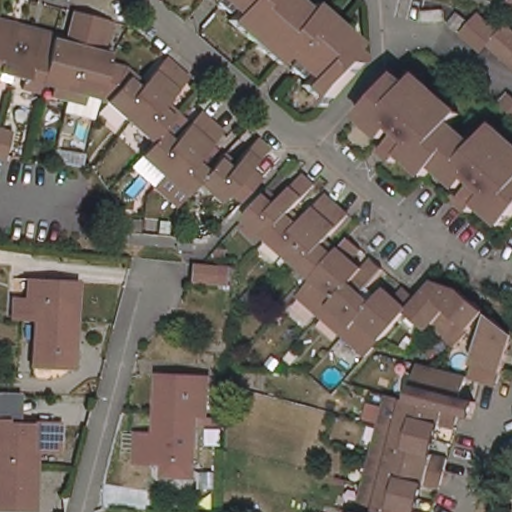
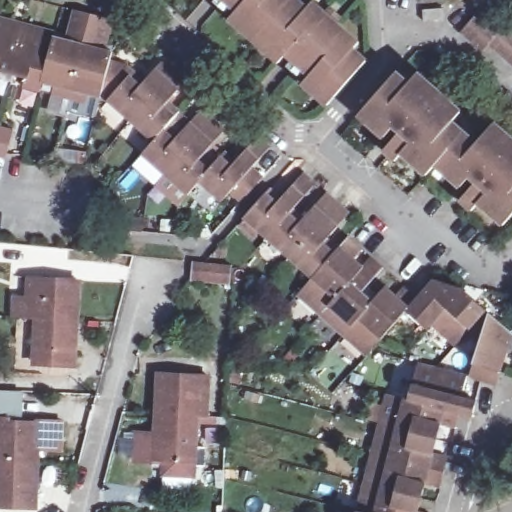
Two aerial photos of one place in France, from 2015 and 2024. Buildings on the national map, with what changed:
unchanged [(305,6),(310,0),(322,11),(327,6),(337,15),(332,20),(357,42),(352,47),(364,60),(332,94),(321,82),(313,91),(301,81),(307,72),(300,65),(297,67),(293,68),(290,66),(290,57),(283,51),(276,59),(266,50),(272,42),(246,17),(238,26),(228,16),(235,9),(227,2),(225,4),(221,4),(217,2),(217,0),(298,0),(305,6)]
unchanged [(501,12),(505,0),(512,0),(512,16),(501,12)]
unchanged [(447,5),(447,14),(426,15),(426,6),(447,5)]
unchanged [(11,28),(37,35),(38,29),(56,34),(55,39),(65,42),(74,9),(77,10),(107,17),(99,51),(110,54),(107,63),(101,92),(99,99),(87,96),(85,104),(52,96),(54,87),(42,84),(40,93),(24,89),(26,81),(2,75),(0,81),(0,20),(12,23),(11,28)]
unchanged [(500,29),(506,22),(512,28),(512,65),(487,43),(481,50),(461,32),(480,11),(500,29)]
unchanged [(101,92),(107,63),(128,69),(144,82),(167,56),(191,76),(172,97),(167,93),(162,99),(178,113),(166,126),(183,141),(188,136),(184,132),(202,112),(224,131),(205,152),(201,147),(196,152),(212,167),(225,153),(241,167),(245,163),(239,157),(259,137),(272,147),(252,169),(262,178),(254,187),(242,201),(232,192),(222,202),(199,182),(187,195),(142,154),(153,142),(108,101),(99,99),(101,92)]
unchanged [(491,217),(477,205),(470,213),(452,198),(460,190),(447,180),(435,169),(427,177),(415,166),(402,155),(395,163),(377,148),(385,140),(372,128),(360,118),(368,109),(394,79),(407,89),(415,79),(426,87),(440,100),(460,117),(451,128),(475,149),(493,129),(506,140),(512,145),(512,220),(504,230),(491,217)]
unchanged [(512,100),(512,117),(499,106),(508,96),(512,100)]
unchanged [(0,128),(24,133),(17,158),(17,160),(0,156),(0,128)]
unchanged [(402,287),(414,297),(403,310),(392,323),(363,356),(295,295),(311,276),(242,215),(266,187),(279,199),(284,192),(301,174),(312,184),(291,209),(301,219),(307,212),(324,195),(347,214),(329,232),(324,239),(337,250),(347,238),(359,248),(346,263),(357,273),(371,258),(381,268),(360,292),(371,302),(384,288),(393,297),(402,287)]
unchanged [(236,272),(234,287),(200,282),(202,267),(236,272)]
unchanged [(52,279),(52,282),(79,284),(75,347),(81,347),(79,367),(52,367),(52,362),(37,361),(40,320),(15,319),(16,297),(30,298),(32,278),(52,279)]
unchanged [(414,297),(426,283),(435,292),(442,283),(460,290),(456,294),(470,305),(472,302),(483,311),(452,346),(429,325),(424,329),(403,310),(414,297)]
unchanged [(511,335),(493,387),(469,378),(489,316),(511,335)]
unchanged [(406,400),(416,363),(466,377),(462,392),(460,400),(474,403),(471,417),(457,413),(452,429),(440,425),(431,455),(445,459),(437,488),(424,485),(417,512),(353,512),(385,394),(406,400)]
unchanged [(188,378),(189,376),(211,377),(210,401),(204,401),(203,418),(198,418),(197,466),(189,475),(170,475),(164,467),(164,461),(135,461),(135,437),(159,437),(161,377),(188,378)]
unchanged [(12,427),(39,427),(39,424),(64,424),(64,452),(37,451),(36,490),(41,490),(39,511),(16,511),(16,506),(0,506),(0,423),(12,423),(12,427)]

